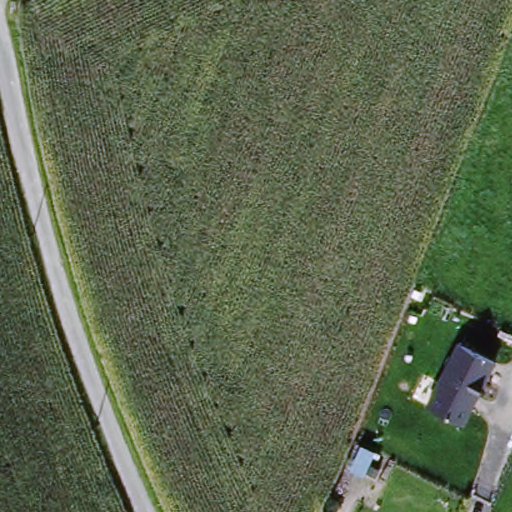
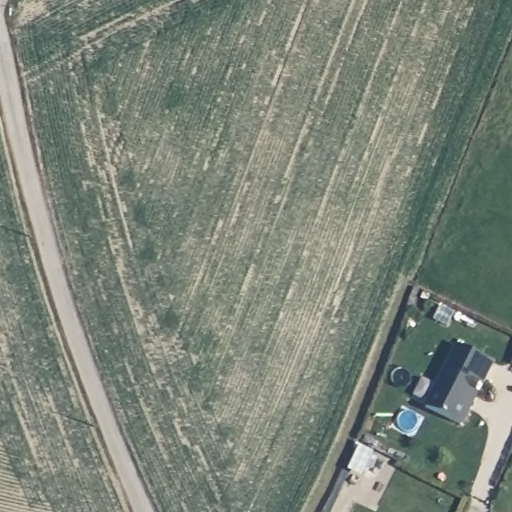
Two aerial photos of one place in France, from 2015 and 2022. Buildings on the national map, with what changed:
unchanged [(495,365),(464,427),(429,410),(460,346),(495,365)]

